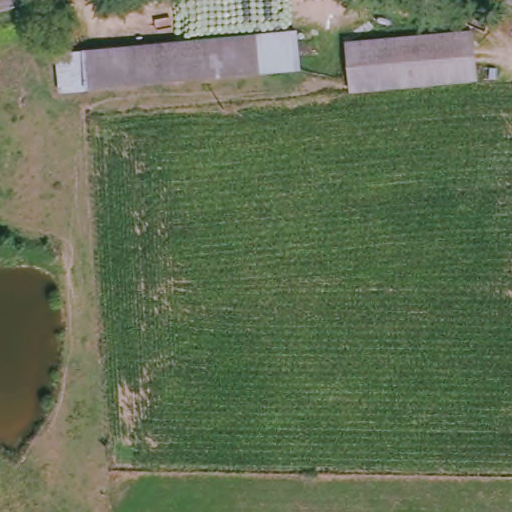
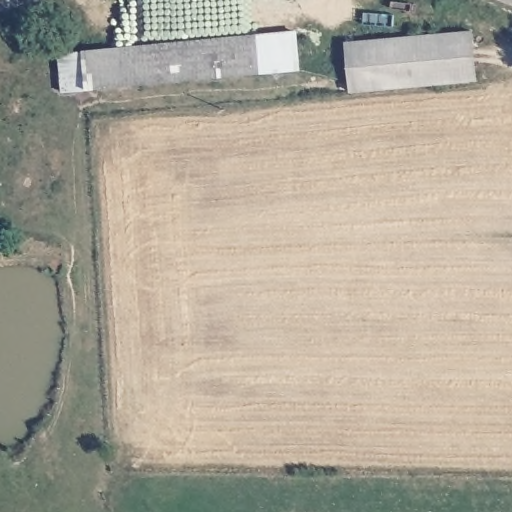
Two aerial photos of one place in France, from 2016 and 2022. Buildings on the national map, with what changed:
unchanged [(51,55),(81,50),(297,29),(300,70),(89,89),(58,93),(51,55)]
unchanged [(474,81),(348,92),(343,37),(471,33),(474,81)]

